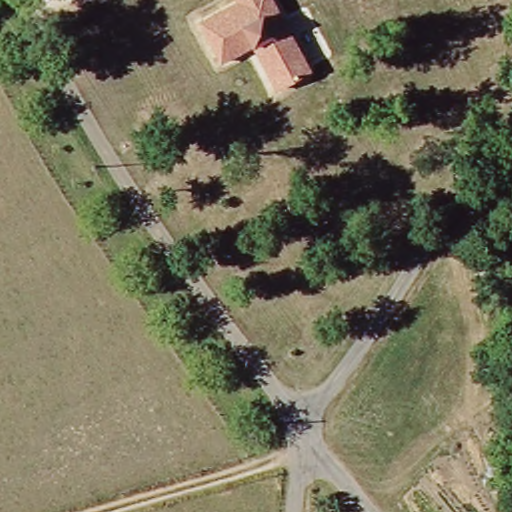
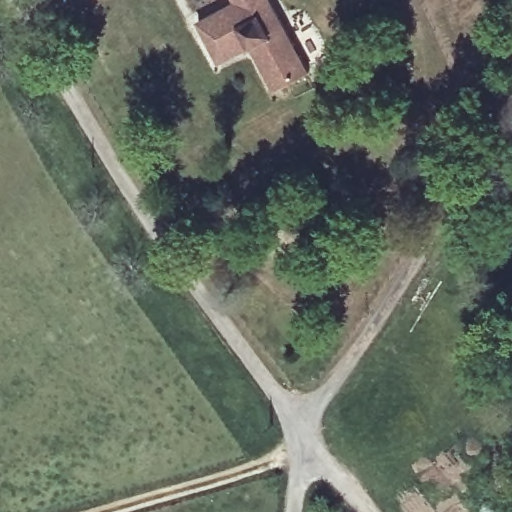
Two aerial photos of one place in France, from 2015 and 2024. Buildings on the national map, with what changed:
unchanged [(312,70),(273,90),(252,47),(220,63),(197,19),(232,0),(276,0),(312,70)]

